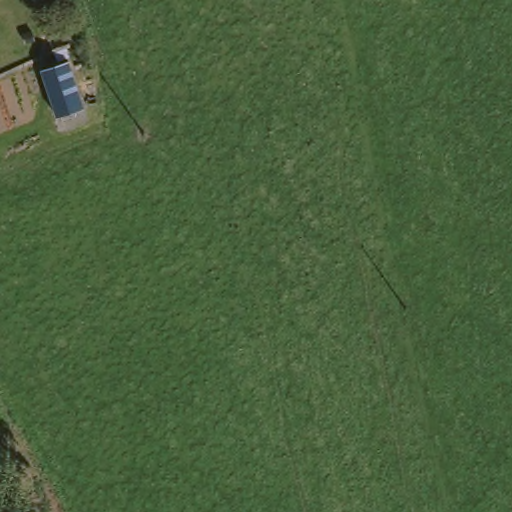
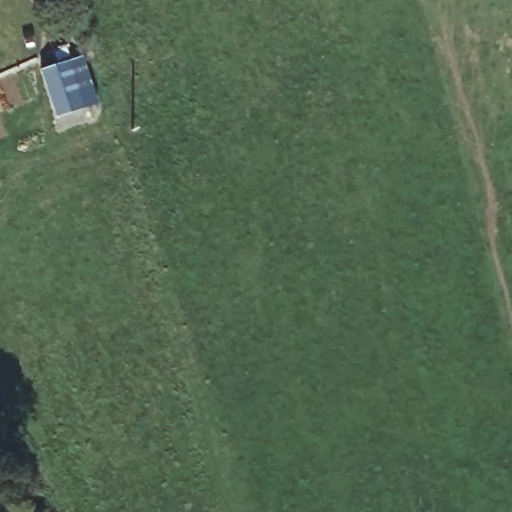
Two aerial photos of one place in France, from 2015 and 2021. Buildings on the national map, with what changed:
unchanged [(94,108),(58,117),(44,73),(43,69),(74,55),(94,108)]

